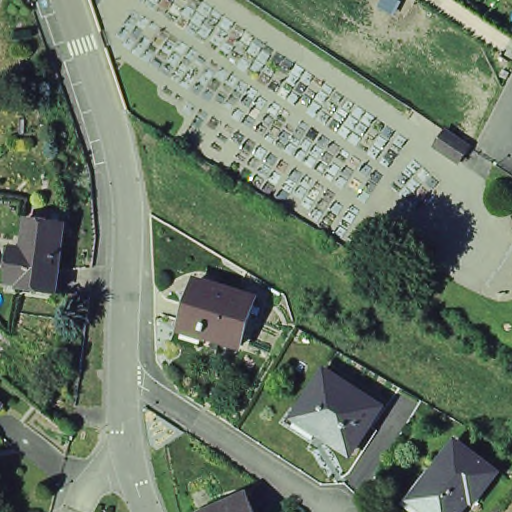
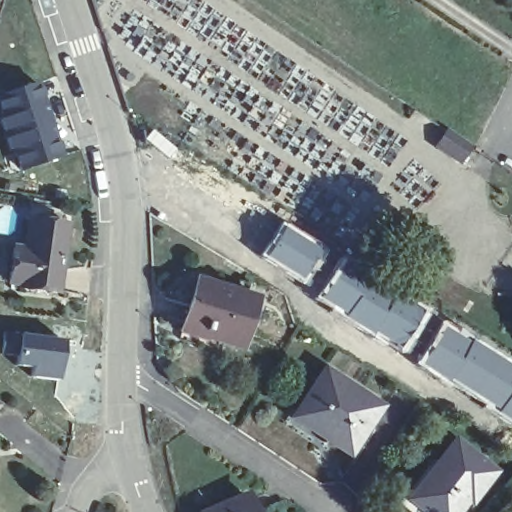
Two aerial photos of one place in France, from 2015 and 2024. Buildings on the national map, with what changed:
new [(60,155),(15,170),(0,132),(0,94),(35,81),(60,155)]
unchanged [(470,145),(460,160),(438,145),(447,130),(470,145)]
unchanged [(61,297),(24,294),(24,289),(12,287),(16,252),(31,255),(33,244),(30,244),(33,224),(70,229),(61,297)]
new [(338,258),(383,284),(423,311),(398,351),(355,325),(315,296),(338,258)]
unchanged [(177,328),(175,327),(193,275),(233,290),(251,295),(250,300),(236,342),(215,335),(213,341),(177,328)]
new [(438,323),(465,335),(510,363),(512,365),(512,424),(470,396),(415,362),(438,323)]
demolished [(0,375),(0,349),(13,361),(0,375)]
unchanged [(384,411),(355,457),(330,442),(331,440),(300,420),(328,375),(384,411)]
unchanged [(425,468),(429,471),(455,438),(496,471),(481,491),(477,488),(458,512),(416,512),(400,500),(425,468)]
unchanged [(256,489),(266,512),(212,512),(210,509),(256,489)]

